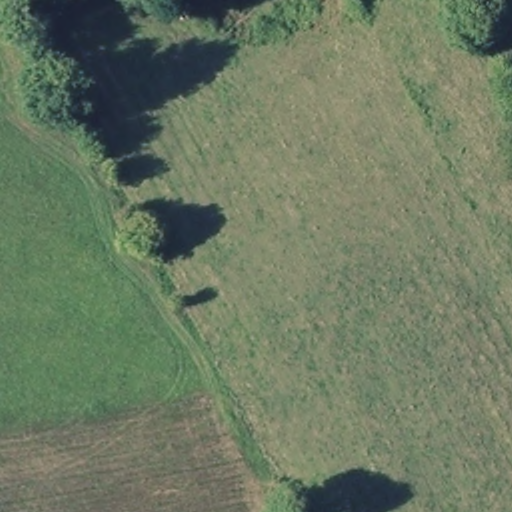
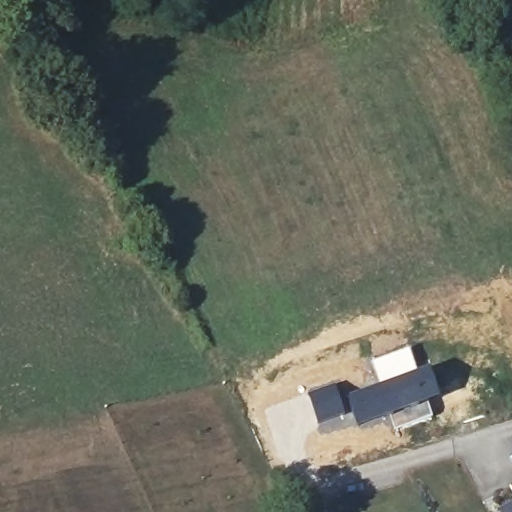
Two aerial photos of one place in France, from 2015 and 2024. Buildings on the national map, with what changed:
new [(410,347),(418,370),(379,384),(370,361),(410,347)]
new [(379,384),(418,370),(429,367),(440,397),(428,402),(433,417),(394,430),(389,417),(354,427),(341,399),(379,384)]
new [(336,384),(341,399),(354,427),(320,435),(306,393),(336,384)]
new [(505,487),(512,483),(512,502),(505,487)]
new [(498,508),(512,502),(512,512),(492,512),(498,508)]

